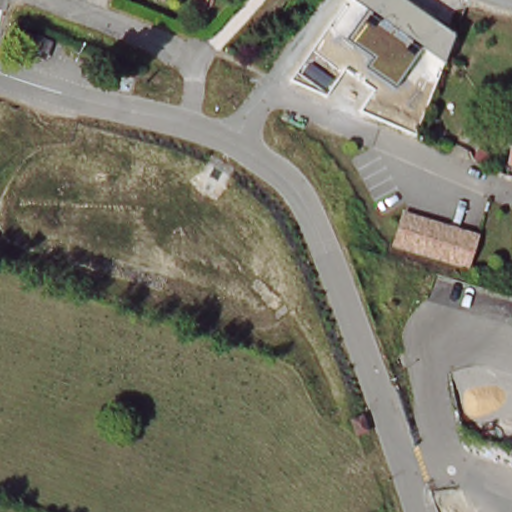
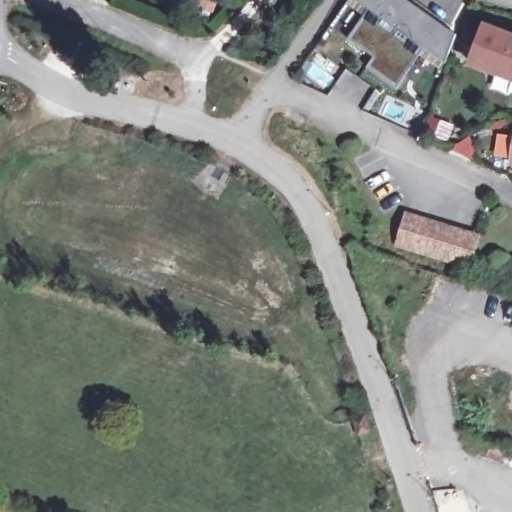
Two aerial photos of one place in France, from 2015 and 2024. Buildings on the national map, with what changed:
unchanged [(422,48),(395,87),(365,67),(373,57),(347,40),(369,10),(354,0),(404,0),(454,36),(443,63),(422,48)]
new [(485,26),(512,36),(512,79),(471,63),(485,26)]
unchanged [(44,48),(48,50),(45,59),(37,57),(37,56),(37,54),(39,48),(32,45),(33,44),(36,34),(47,38),(44,47),(44,48)]
unchanged [(507,159),(512,127),(512,160),(507,159)]
unchanged [(477,235),(467,263),(398,241),(407,212),(477,235)]
unchanged [(370,432),(360,435),(355,421),(365,417),(370,432)]

